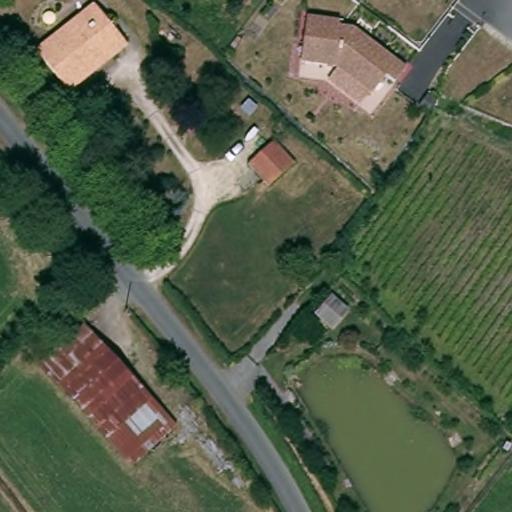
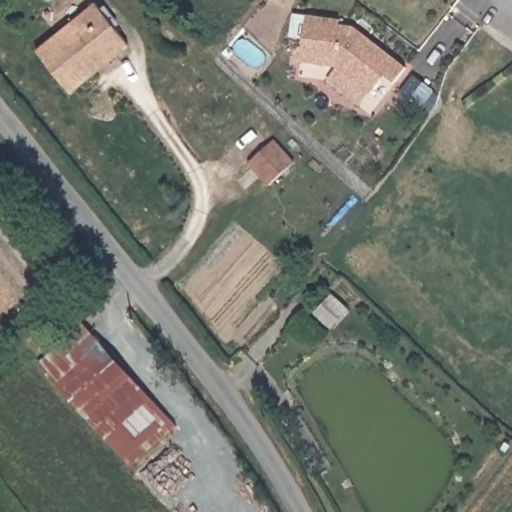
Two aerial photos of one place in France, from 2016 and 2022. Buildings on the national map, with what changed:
unchanged [(128,36),(116,46),(110,40),(91,58),(96,64),(72,85),(39,48),(93,0),(96,0),(128,36)]
unchanged [(301,52),(307,6),(340,10),(339,15),(353,17),(407,57),(396,72),(387,65),(373,84),(338,57),(301,52)]
unchanged [(296,159),(273,178),(254,156),(277,138),(296,159)]
unchanged [(352,303),(334,320),(319,304),(338,287),(352,303)]
unchanged [(174,418),(129,457),(45,359),(89,323),(174,418)]

